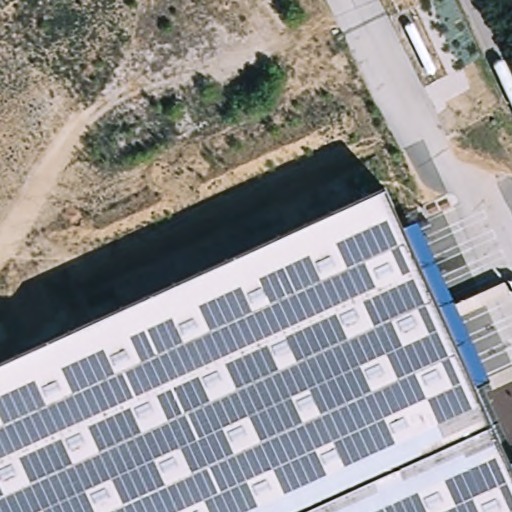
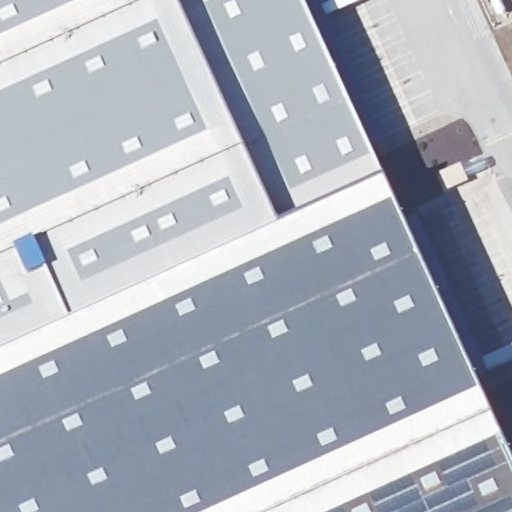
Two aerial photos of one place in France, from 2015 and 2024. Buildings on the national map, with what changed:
new [(382,180),(0,356),(0,0),(299,0),(382,180)]
unchanged [(382,180),(512,463),(512,512),(0,512),(0,356),(382,180)]

